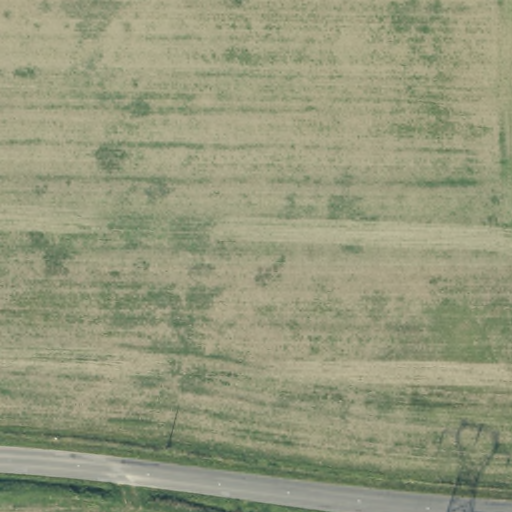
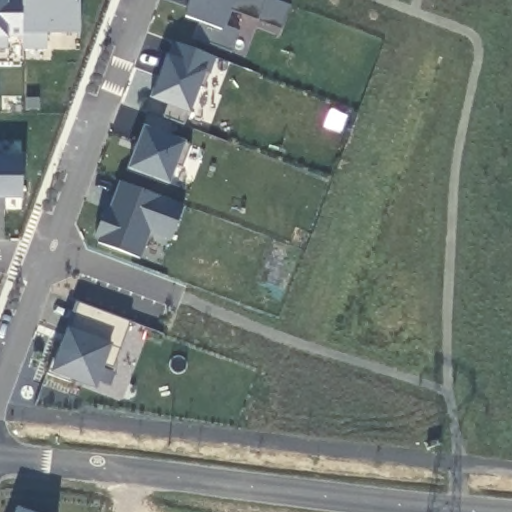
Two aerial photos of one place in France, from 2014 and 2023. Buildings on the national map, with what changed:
new [(47,51),(23,50),(23,39),(7,38),(7,49),(0,50),(0,0),(80,0),(81,35),(44,35),(47,51)]
new [(258,20),(229,8),(223,24),(240,32),(232,53),(194,39),(198,21),(185,17),(191,0),(265,0),(258,20)]
new [(190,115),(184,112),(183,125),(174,122),(168,136),(186,143),(170,184),(128,168),(144,126),(147,112),(163,118),(169,106),(150,98),(168,55),(174,42),(215,58),(190,115)]
new [(171,241),(151,234),(141,259),(96,243),(98,238),(93,236),(103,209),(108,210),(119,181),(184,205),(171,241)]
new [(114,368),(103,363),(94,386),(72,378),(71,383),(47,375),(57,348),(63,350),(70,330),(76,302),(130,322),(114,368)]

